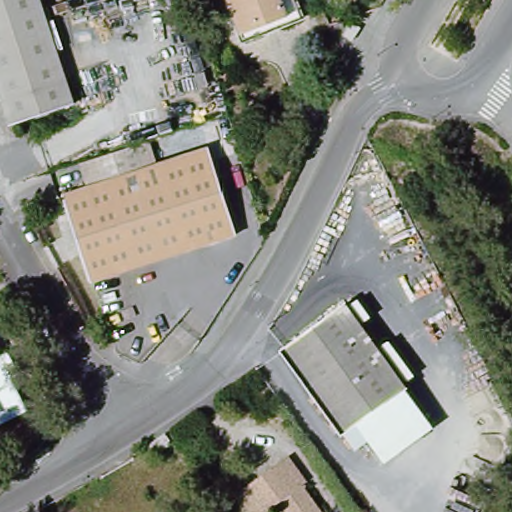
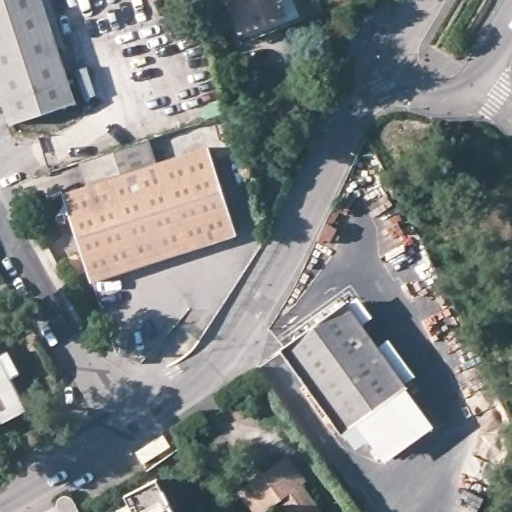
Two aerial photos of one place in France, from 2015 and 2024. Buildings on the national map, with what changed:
unchanged [(0,0),(39,0),(74,105),(13,125),(0,86),(0,0)]
unchanged [(302,22),(244,45),(226,0),(293,0),(302,22)]
unchanged [(361,27),(353,40),(344,35),(352,22),(361,27)]
unchanged [(79,165),(149,141),(160,170),(88,194),(79,165)]
unchanged [(97,286),(69,200),(88,194),(160,170),(213,153),(242,240),(97,286)]
demolished [(0,283),(2,285),(0,286),(0,283)]
unchanged [(337,439),(278,356),(342,310),(401,394),(337,439)]
unchanged [(9,371),(29,411),(0,426),(0,349),(5,347),(15,367),(9,371)]
unchanged [(401,394),(428,432),(383,464),(368,442),(357,450),(345,434),(401,394)]
unchanged [(155,455),(147,446),(148,445),(165,433),(172,445),(155,455)]
unchanged [(264,512),(252,512),(237,490),(289,453),(308,481),(303,485),(322,512),(284,512),(278,502),(264,512)]
new [(118,512),(117,510),(129,504),(125,495),(157,479),(174,512),(118,512)]
new [(58,500),(62,496),(68,496),(73,500),(79,512),(60,512),(57,505),(58,500)]

